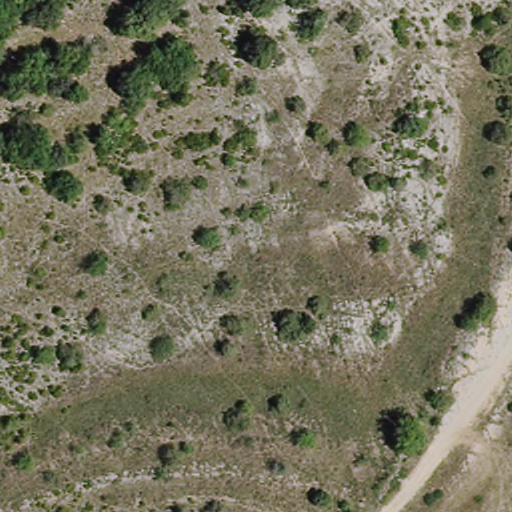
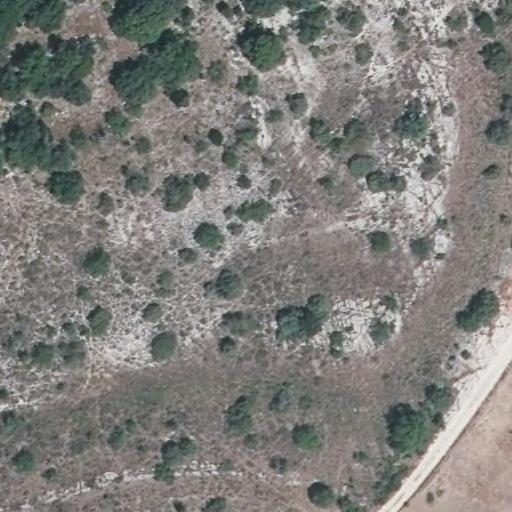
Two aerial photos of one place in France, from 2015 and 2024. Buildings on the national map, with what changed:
[]

